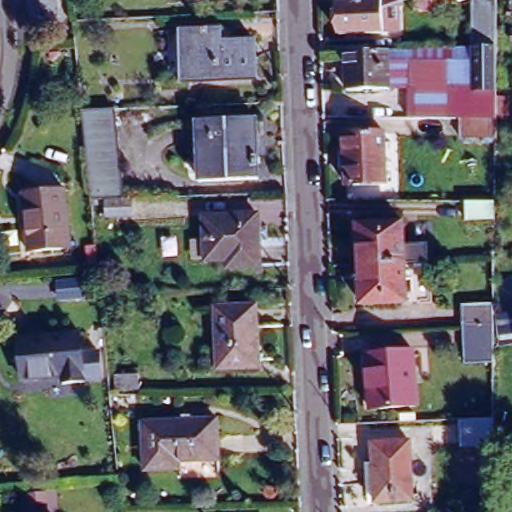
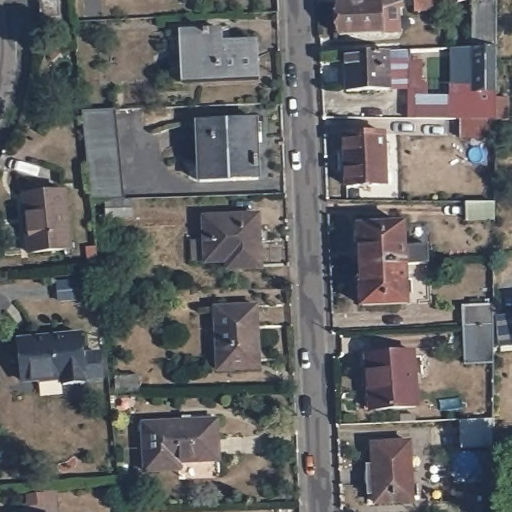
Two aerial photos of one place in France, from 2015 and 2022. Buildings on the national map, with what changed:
unchanged [(46,16),(45,0),(62,0),(62,15),(46,16)]
unchanged [(391,0),(392,8),(387,9),(389,29),(385,33),(372,34),(331,36),(330,4),(378,0),(384,0),(391,0)]
unchanged [(257,83),(186,87),(183,35),(215,34),(216,47),(255,46),(257,83)]
unchanged [(382,51),(390,50),(392,90),(350,92),(348,53),(382,51)]
unchanged [(100,216),(98,199),(96,199),(87,109),(119,108),(127,199),(140,198),(140,216),(100,216)]
unchanged [(254,183),(197,184),(195,124),(252,123),(254,183)]
unchanged [(385,185),(345,186),(343,136),(382,134),(385,185)]
unchanged [(70,249),(28,253),(23,195),(65,191),(70,249)]
unchanged [(493,220),(466,219),(467,200),(494,200),(493,220)]
unchanged [(257,268),(232,269),(232,262),(200,262),(197,218),(255,216),(257,268)]
unchanged [(400,224),(400,245),(424,244),(424,263),(401,264),(356,266),(355,226),(400,224)]
unchanged [(401,264),(402,304),(357,305),(356,266),(401,264)]
unchanged [(258,367),(215,369),(213,307),(256,306),(258,367)]
unchanged [(465,364),(463,326),(463,307),(490,306),(491,325),(492,364),(465,364)]
unchanged [(83,351),(100,347),(105,371),(88,374),(88,377),(67,381),(65,372),(27,378),(20,340),(80,330),(83,351)]
unchanged [(413,407),(367,409),(364,355),(412,353),(413,407)]
unchanged [(137,393),(111,393),(112,379),(137,379),(137,393)]
unchanged [(491,419),(492,445),(462,447),(460,420),(491,419)]
unchanged [(215,464),(175,466),(176,474),(142,475),(139,426),(214,423),(215,464)]
unchanged [(413,502),(377,503),(373,446),(412,445),(413,502)]

